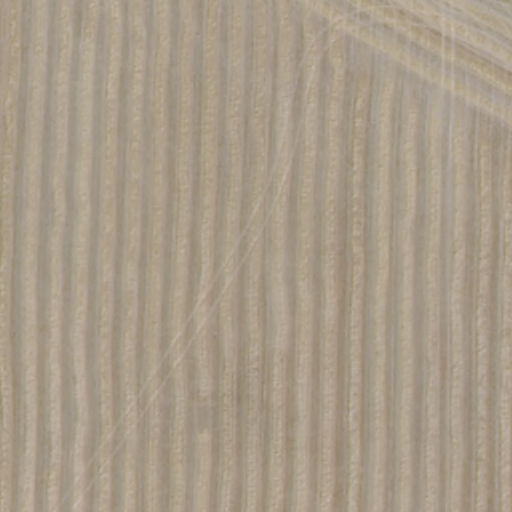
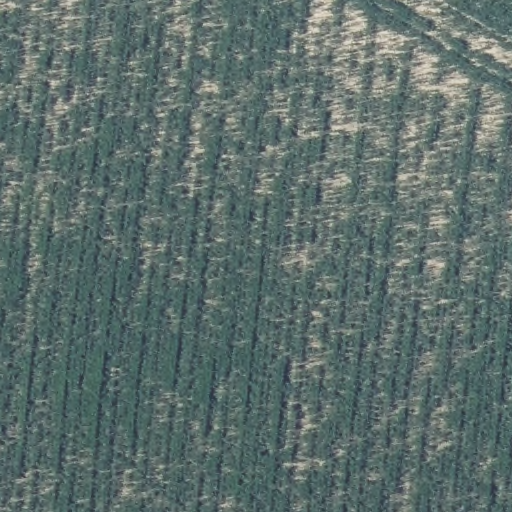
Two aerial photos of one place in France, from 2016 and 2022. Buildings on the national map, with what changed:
[]

